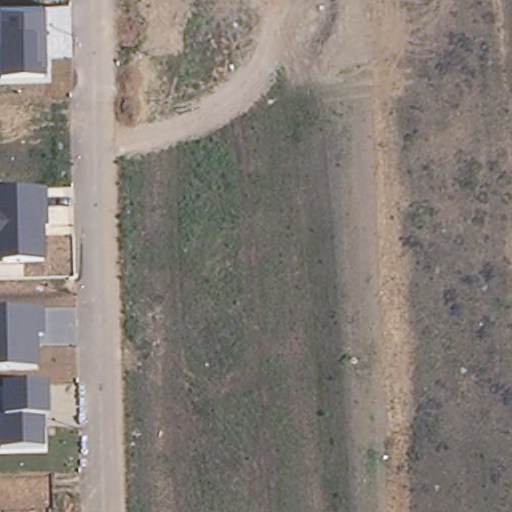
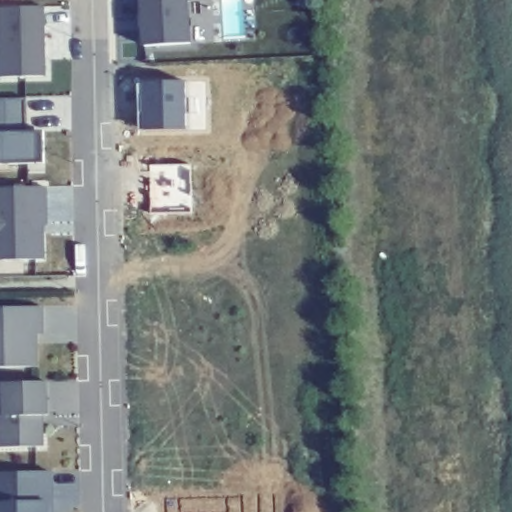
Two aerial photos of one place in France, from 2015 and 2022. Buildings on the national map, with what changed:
new [(143,23),(142,0),(187,0),(190,53),(145,55),(144,38),(142,38),(142,23),(143,23)]
unchanged [(0,60),(0,7),(45,6),(47,75),(0,77),(0,60)]
new [(184,81),(185,128),(141,128),(142,81),(184,81)]
new [(28,100),(29,133),(45,133),(45,162),(0,164),(0,101),(28,100)]
new [(192,165),(192,214),(150,213),(149,165),(192,165)]
unchanged [(47,187),(49,258),(0,260),(0,188),(47,187)]
unchanged [(44,305),(45,333),(38,334),(39,366),(0,367),(0,307),(44,305)]
unchanged [(4,414),(4,381),(49,379),(50,414),(45,415),(45,447),(0,447),(0,414),(4,414)]
new [(48,472),(49,499),(49,512),(0,512),(0,474),(48,472)]

